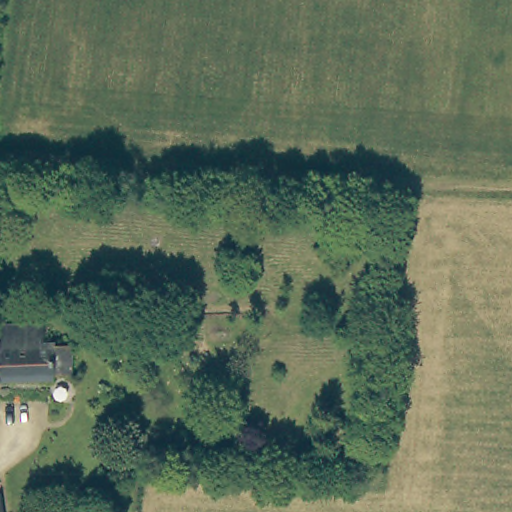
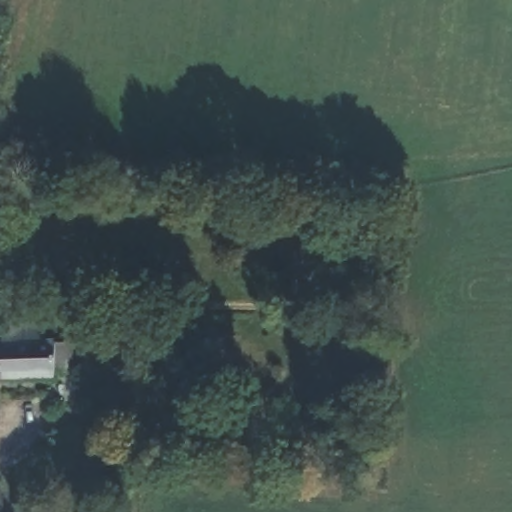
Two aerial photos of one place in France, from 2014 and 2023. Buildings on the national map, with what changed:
unchanged [(40,326),(40,345),(68,344),(68,372),(51,372),(52,381),(0,381),(0,326),(40,326)]
unchanged [(1,512),(0,512),(0,508),(1,512)]

